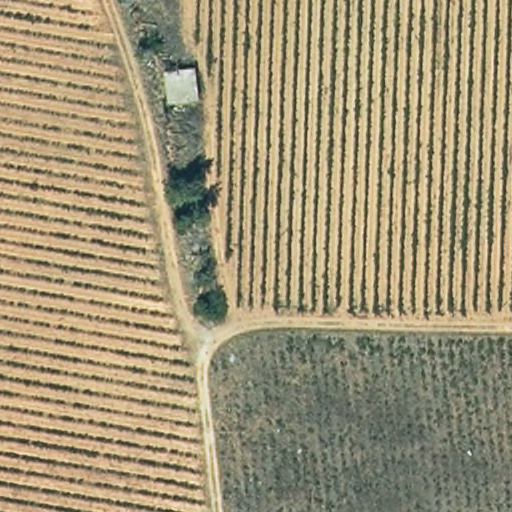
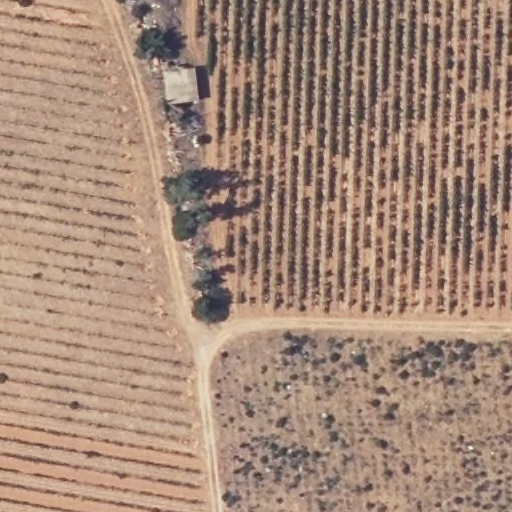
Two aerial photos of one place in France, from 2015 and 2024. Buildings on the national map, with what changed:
unchanged [(198,59),(201,97),(170,104),(161,65),(198,59)]

